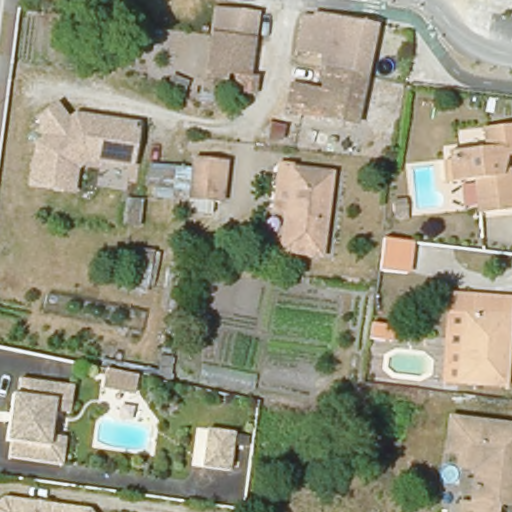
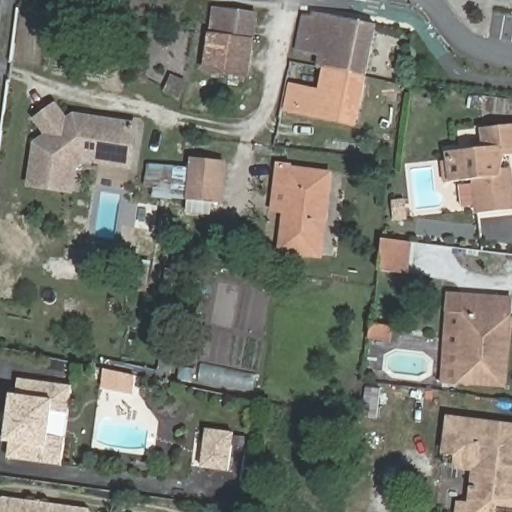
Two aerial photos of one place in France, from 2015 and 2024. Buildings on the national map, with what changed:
unchanged [(210,10),(251,15),(248,41),(207,36),(210,10)]
unchanged [(329,69),(323,67),(326,55),(302,51),(309,18),(318,20),(320,12),(380,25),(369,77),(329,69)]
unchanged [(196,109),(202,71),(207,36),(248,41),(243,76),(250,77),(247,95),(227,92),(230,75),(221,73),(215,112),(196,109)]
unchanged [(358,126),(290,111),(295,86),(324,93),(329,69),(369,77),(358,126)]
unchanged [(135,166),(91,160),(79,169),(76,192),(35,186),(41,145),(54,136),(42,121),(60,107),(71,122),(79,117),(140,125),(135,166)]
unchanged [(274,137),(263,135),(264,131),(266,122),(276,125),(282,127),(281,132),(288,135),(286,141),(279,139),(274,137)]
unchanged [(448,164),(446,153),(483,150),(482,129),(512,125),(512,156),(505,157),(500,172),(506,170),(510,169),(511,177),(512,181),(512,210),(477,214),(475,180),(450,183),(444,184),(442,165),(448,164)]
unchanged [(196,170),(197,160),(229,163),(225,204),(194,200),(196,170)]
unchanged [(321,258),(281,252),(286,212),(272,211),(278,164),(293,167),(292,170),(332,176),(321,258)]
unchanged [(152,196),(153,186),(155,165),(196,170),(194,200),(152,196)]
unchanged [(404,238),(412,239),(407,271),(380,267),(385,236),(385,235),(404,238)]
unchanged [(445,352),(448,297),(510,300),(508,333),(505,387),(498,387),(457,384),(443,383),(445,352)]
unchanged [(105,368),(137,375),(135,396),(100,385),(105,368)]
unchanged [(10,442),(5,441),(12,395),(17,395),(20,380),(72,387),(70,403),(55,402),(53,411),(50,436),(65,438),(61,465),(9,457),(10,442)]
unchanged [(498,512),(461,512),(462,504),(471,505),(475,467),(460,465),(443,462),(445,450),(448,419),(512,426),(512,497),(500,496),(498,512)]
unchanged [(205,447),(212,448),(215,431),(234,434),(229,472),(202,467),(205,447)]
unchanged [(0,500),(6,495),(89,507),(93,512),(0,512),(0,500)]

